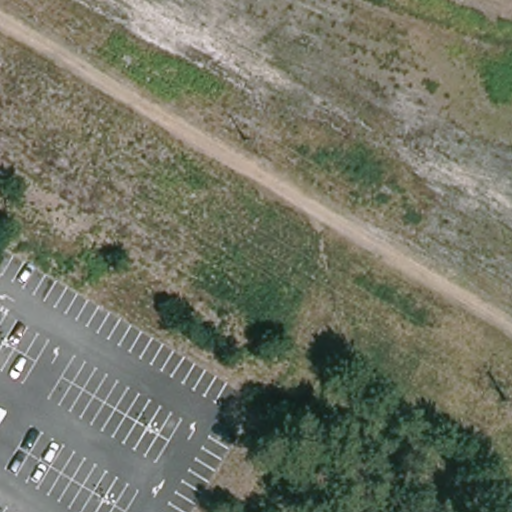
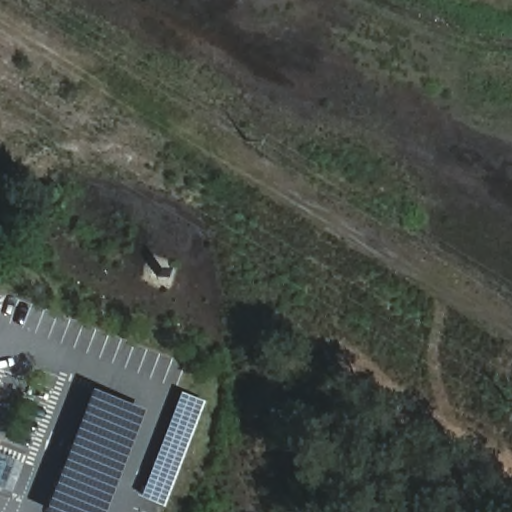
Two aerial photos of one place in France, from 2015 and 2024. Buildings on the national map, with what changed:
new [(145,412),(105,512),(47,512),(92,392),(145,412)]
new [(182,394),(204,403),(164,507),(141,498),(182,394)]

